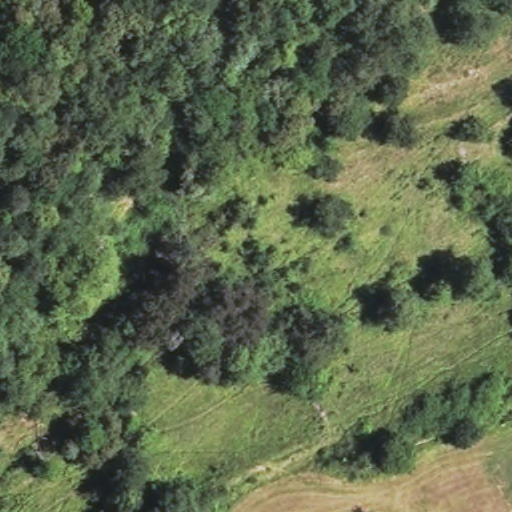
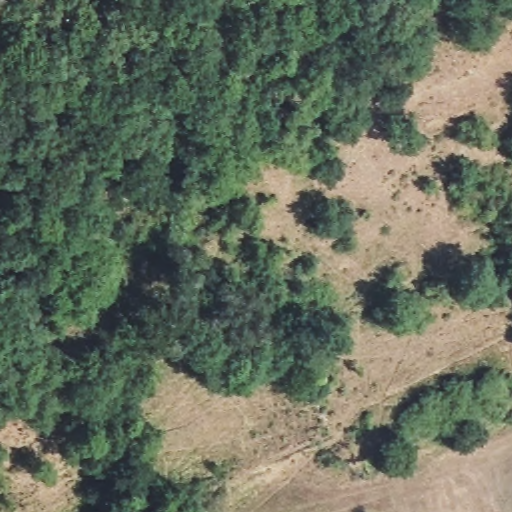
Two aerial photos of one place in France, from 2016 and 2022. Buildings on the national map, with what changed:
[]

